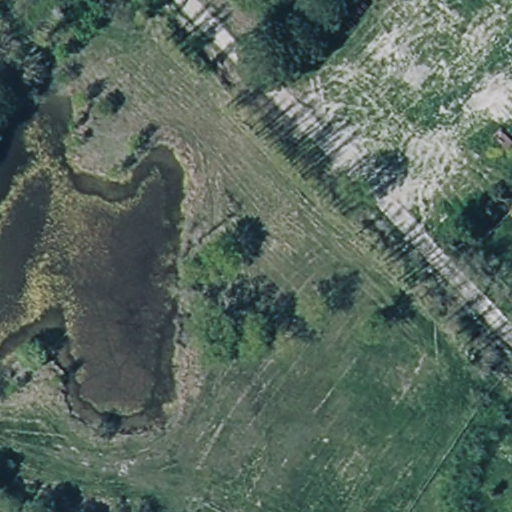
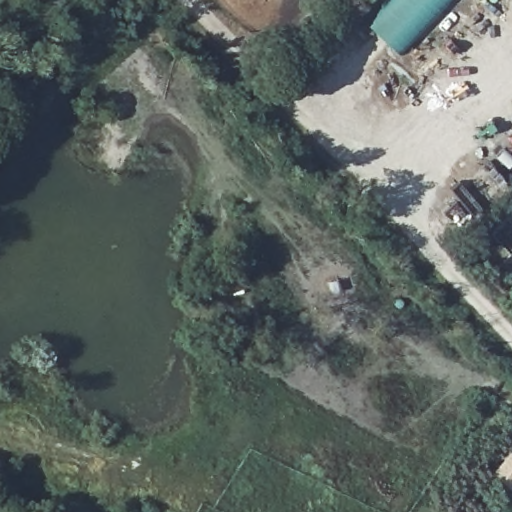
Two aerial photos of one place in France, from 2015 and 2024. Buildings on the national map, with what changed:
new [(392,0),(445,0),(397,53),(369,25),(392,0)]

